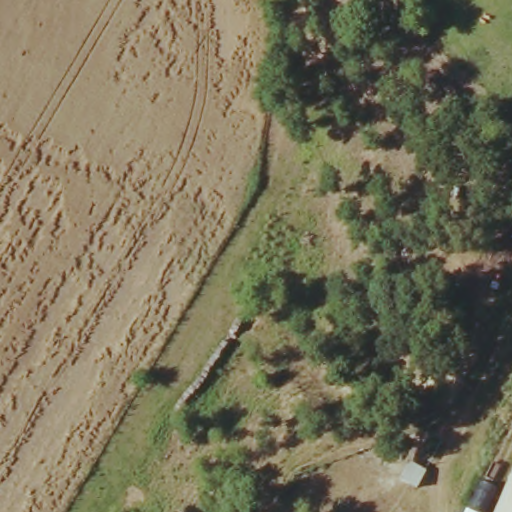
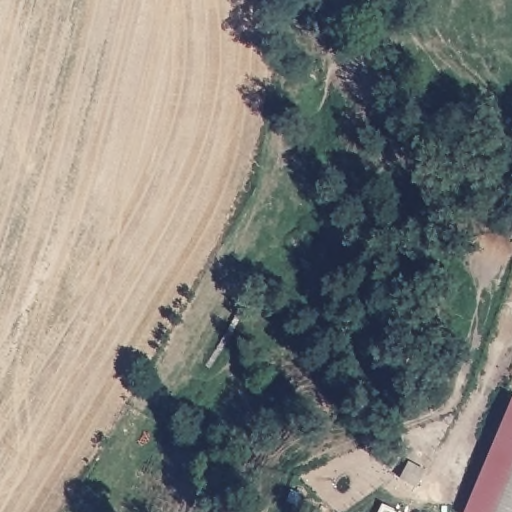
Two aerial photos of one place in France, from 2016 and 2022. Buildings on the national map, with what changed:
new [(512,462),(492,512),(464,512),(511,399),(512,399),(512,462)]
unchanged [(512,512),(492,512),(512,462),(512,512)]

